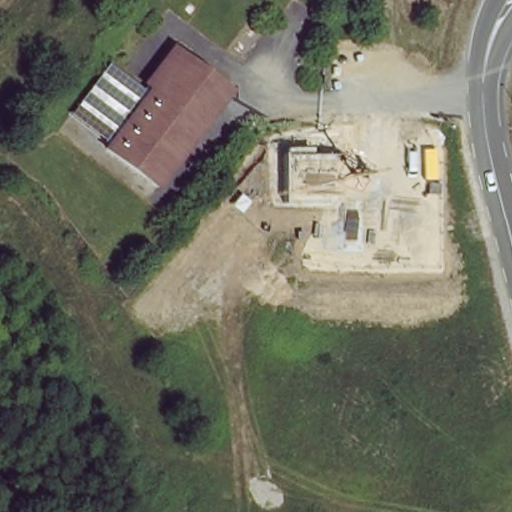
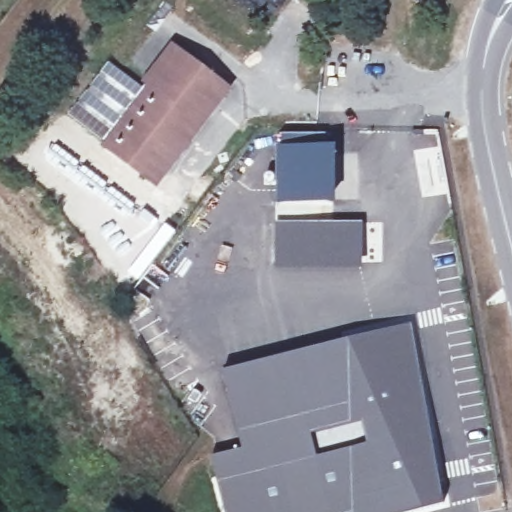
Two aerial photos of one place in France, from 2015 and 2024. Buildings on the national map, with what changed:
unchanged [(169,108),(132,159),(108,141),(153,79),(147,76),(174,37),(204,60),(169,108)]
unchanged [(67,112),(107,59),(137,81),(97,132),(67,112)]
unchanged [(169,108),(204,60),(233,82),(160,180),(132,159),(169,108)]
unchanged [(279,135),(321,135),(321,153),(333,153),(333,202),(279,203),(279,153),(279,135)]
new [(363,221),(362,270),(274,270),(273,221),(363,221)]
new [(203,463),(244,450),(218,371),(412,320),(448,503),(404,512),(219,512),(203,463)]

